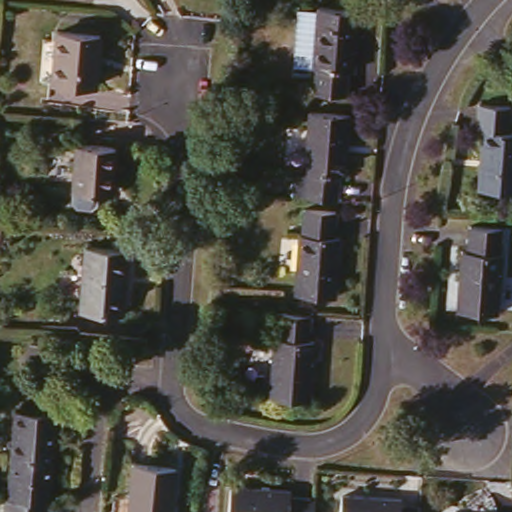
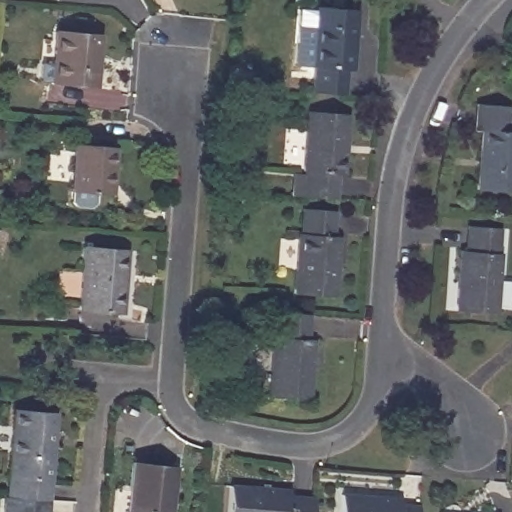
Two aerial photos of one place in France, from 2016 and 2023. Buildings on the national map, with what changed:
unchanged [(308,88),(310,61),(306,60),(311,2),(353,6),(348,66),(342,66),(340,90),(308,88)]
unchanged [(94,82),(51,79),(55,29),(98,32),(94,82)]
unchanged [(512,127),(512,187),(475,182),(479,124),(474,124),(476,99),(508,102),(507,126),(512,127)]
unchanged [(304,167),(300,167),(306,107),(345,110),(340,170),(334,169),(332,194),(302,191),(304,167)]
unchanged [(105,187),(97,187),(96,197),(90,201),(75,200),(70,194),(71,185),(76,138),(115,142),(112,177),(111,187),(105,187)]
unchanged [(293,287),(297,229),(302,230),(304,203),(336,207),(333,232),(340,232),(334,291),(293,287)]
unchanged [(497,250),(500,250),(494,310),(454,307),(459,247),(466,247),(468,222),(499,226),(497,250)]
unchanged [(120,310),(77,306),(82,245),(125,249),(120,310)]
unchanged [(305,337),(309,337),(305,397),(265,394),(269,333),(274,333),(276,308),(306,311),(305,337)]
unchanged [(3,494),(10,405),(51,408),(45,497),(3,494)]
unchanged [(123,512),(126,456),(170,459),(166,512),(123,512)]
unchanged [(283,492),(283,500),(311,501),(311,512),(228,512),(229,488),(283,492)]
unchanged [(399,498),(398,506),(417,507),(417,512),(334,512),(335,493),(399,498)]
unchanged [(45,497),(44,512),(0,512),(1,494),(3,494),(45,497)]

